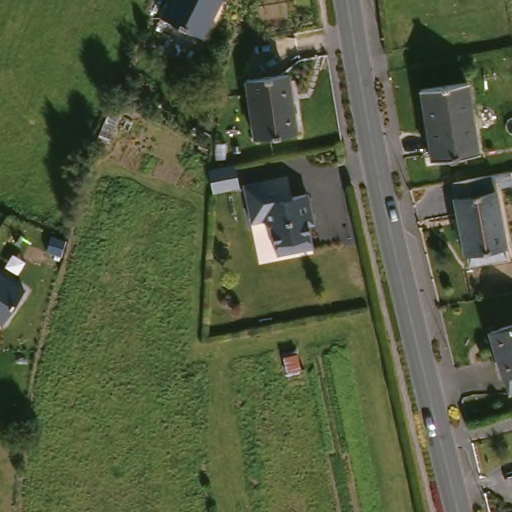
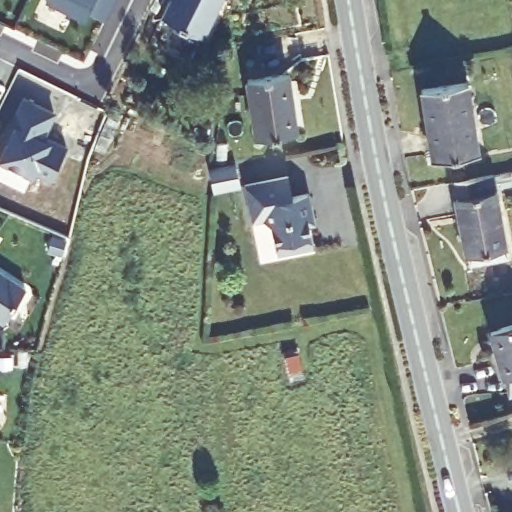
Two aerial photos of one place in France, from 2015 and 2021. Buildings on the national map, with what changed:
new [(50,0),(109,0),(116,3),(102,32),(86,24),(82,33),(43,14),(50,0)]
unchanged [(207,41),(165,20),(177,0),(229,0),(207,41)]
unchanged [(297,133),(258,140),(251,85),(290,77),(297,133)]
unchanged [(432,156),(424,89),(473,81),(483,149),(432,156)]
new [(67,152),(52,182),(36,175),(33,180),(1,165),(9,147),(5,145),(24,105),(55,119),(44,141),(54,145),(67,152)]
unchanged [(290,192),(308,190),(313,220),(305,220),(310,243),(276,249),(272,221),(260,213),(250,215),(245,178),(287,171),(290,192)]
unchanged [(468,269),(466,257),(464,257),(454,199),(458,198),(455,183),(492,176),(505,250),(502,250),(505,262),(468,269)]
unchanged [(25,290),(5,321),(0,318),(0,273),(25,290)]
unchanged [(509,378),(495,334),(512,328),(512,378),(511,377),(509,378)]

